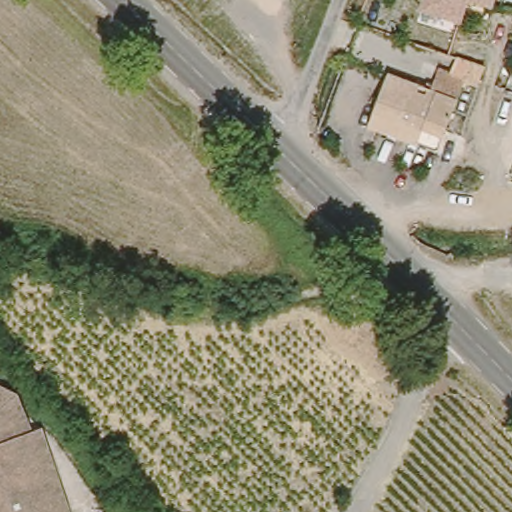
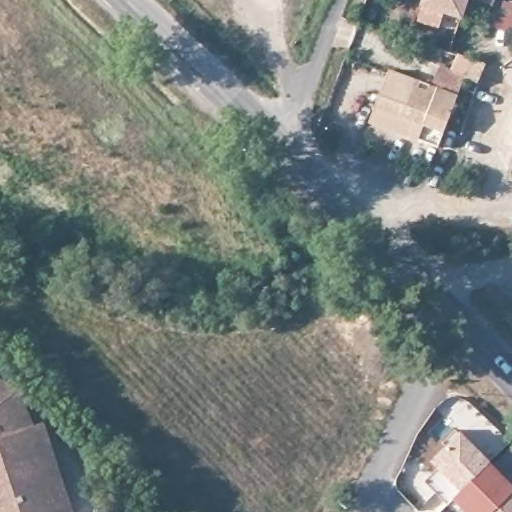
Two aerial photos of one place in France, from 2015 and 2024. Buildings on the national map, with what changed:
unchanged [(467,13),(434,2),(435,0),(471,0),(467,13)]
unchanged [(498,2),(493,0),(498,0),(498,2)]
unchanged [(422,142),(370,126),(386,75),(430,89),(437,66),(463,74),(446,132),(441,148),(422,142)]
unchanged [(3,392),(5,394),(7,396),(7,397),(9,400),(12,409),(18,425),(27,422),(57,501),(62,512),(0,512),(0,389),(2,391),(3,392)]
new [(449,506),(425,480),(435,467),(431,461),(460,431),(512,483),(512,512),(467,512),(452,498),(449,506)]
new [(103,512),(90,512),(102,508),(103,512)]

